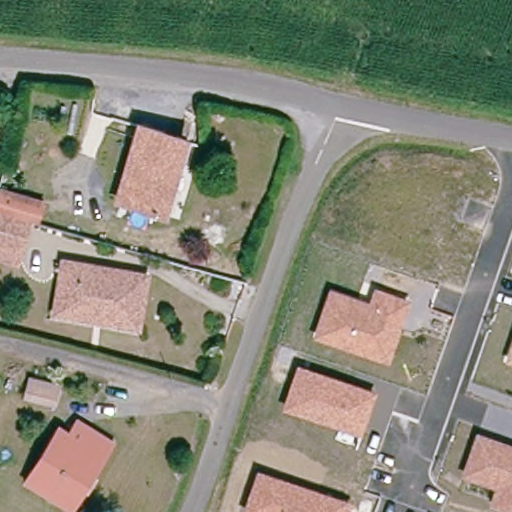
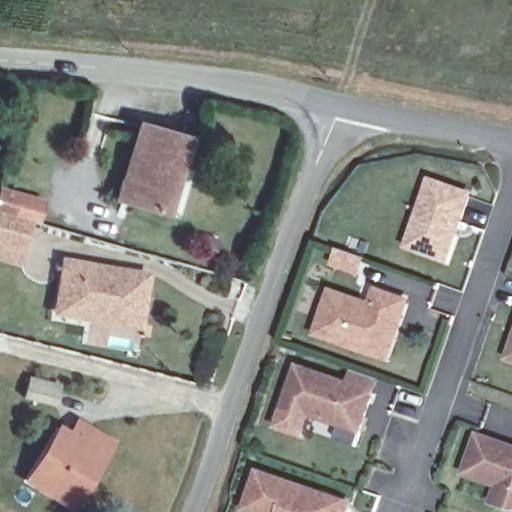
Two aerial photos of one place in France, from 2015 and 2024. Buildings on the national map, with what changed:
unchanged [(116,180),(132,126),(179,141),(172,169),(179,172),(166,218),(126,206),(111,200),(116,180)]
new [(428,188),(466,201),(443,266),(405,253),(428,188)]
unchanged [(0,259),(0,191),(40,204),(35,221),(28,219),(18,253),(15,264),(0,259)]
unchanged [(51,304),(57,273),(59,261),(79,265),(141,275),(131,328),(96,322),(50,314),(51,304)]
unchanged [(329,288),(368,301),(374,286),(410,299),(390,364),(313,337),(329,288)]
unchanged [(512,338),(512,363),(504,361),(512,338)]
unchanged [(297,363),(376,391),(361,435),(281,408),(297,363)]
unchanged [(61,384),(56,398),(24,390),(29,374),(61,384)]
unchanged [(512,444),(512,512),(511,512),(509,512),(489,505),(494,487),(461,475),(475,431),(512,444)]
unchanged [(54,508),(31,492),(19,485),(54,435),(65,444),(71,449),(83,432),(109,450),(97,466),(67,512),(60,512),(54,508)]
unchanged [(256,469),(352,502),(349,512),(244,512),(242,512),(256,469)]

